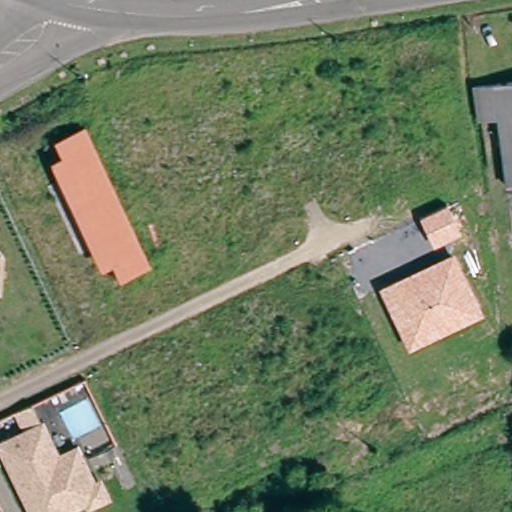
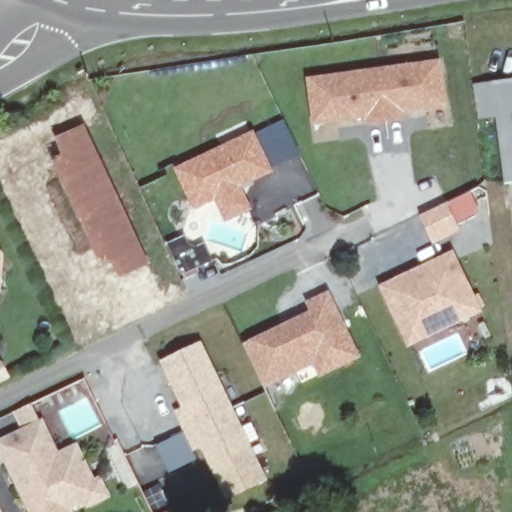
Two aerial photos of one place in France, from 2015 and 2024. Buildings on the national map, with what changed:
new [(447,107),(405,114),(406,121),(365,125),(365,120),(313,125),(308,77),(441,60),(447,107)]
unchanged [(501,119),(477,124),(471,88),(497,83),(512,81),(512,183),(509,183),(501,119)]
unchanged [(60,161),(68,157),(60,140),(85,128),(118,196),(85,212),(60,161)]
new [(255,129),(274,173),(243,189),(253,210),(223,224),(212,201),(191,211),(171,167),(255,129)]
unchanged [(151,264),(126,275),(117,260),(110,263),(85,212),(118,196),(151,264)]
unchanged [(447,201),(461,231),(432,245),(419,215),(447,201)]
unchanged [(5,252),(2,287),(0,287),(0,247),(5,252)]
unchanged [(378,285),(453,250),(483,312),(408,348),(378,285)]
new [(363,358),(320,378),(313,366),(267,387),(244,345),(310,310),(306,304),(330,292),(363,358)]
new [(200,342),(264,477),(227,495),(202,441),(195,445),(186,426),(178,409),(185,405),(163,360),(200,342)]
unchanged [(0,443),(0,440),(41,420),(48,435),(57,453),(75,443),(93,480),(97,477),(104,491),(88,499),(86,495),(66,505),(70,512),(35,512),(0,443)]

